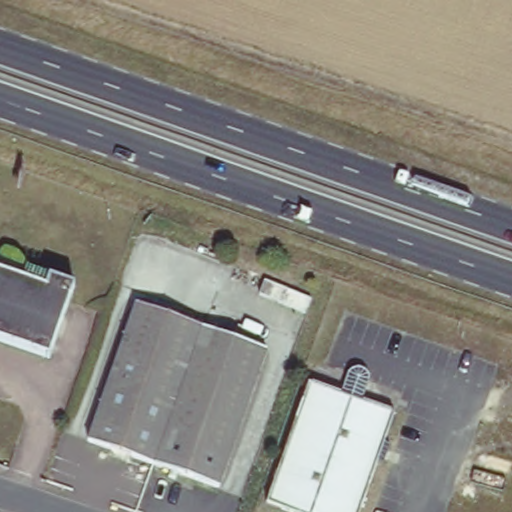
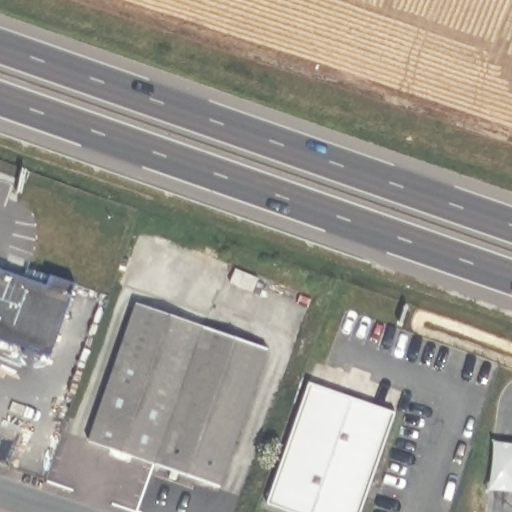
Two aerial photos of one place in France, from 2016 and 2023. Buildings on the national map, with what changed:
unchanged [(75,286),(50,357),(0,340),(0,271),(23,279),(26,270),(75,286)]
unchanged [(135,302),(263,345),(244,404),(242,406),(115,371),(111,370),(135,302)]
unchanged [(242,406),(244,404),(250,405),(220,486),(90,438),(115,371),(242,406)]
unchanged [(306,381),(395,411),(386,436),(385,438),(330,422),(301,416),(295,415),(306,381)]
unchanged [(385,438),(386,436),(390,437),(402,440),(394,464),(381,460),(379,466),(362,512),(309,512),(271,498),(301,416),(330,422),(385,438)]
new [(512,443),(512,489),(490,486),(491,474),(495,441),(512,443)]

